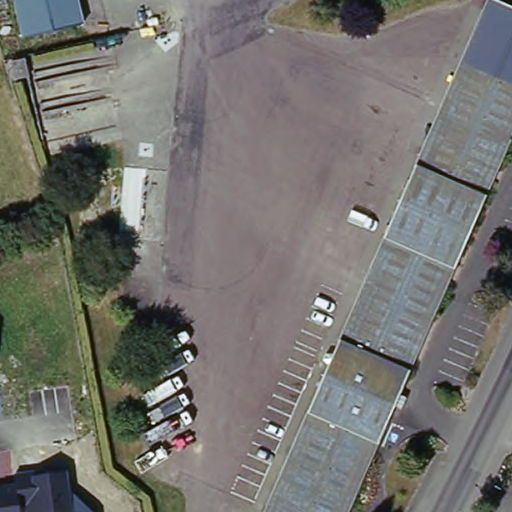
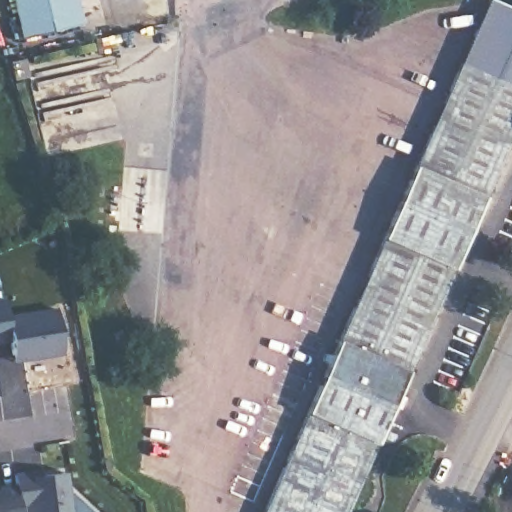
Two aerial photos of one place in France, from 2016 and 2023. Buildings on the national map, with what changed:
unchanged [(86,22),(24,39),(14,0),(80,0),(86,22)]
unchanged [(322,362),(324,357),(331,358),(487,1),(512,12),(512,132),(397,399),(403,403),(398,414),(392,411),(347,512),(264,512),(327,367),(322,362)]
unchanged [(23,63),(27,78),(14,81),(11,65),(23,63)]
new [(4,299),(7,318),(56,311),(62,354),(14,359),(11,344),(0,345),(0,300),(4,299)]
unchanged [(16,489),(14,477),(67,472),(70,493),(90,512),(26,512),(26,511),(19,512),(0,512),(0,491),(16,489)]

